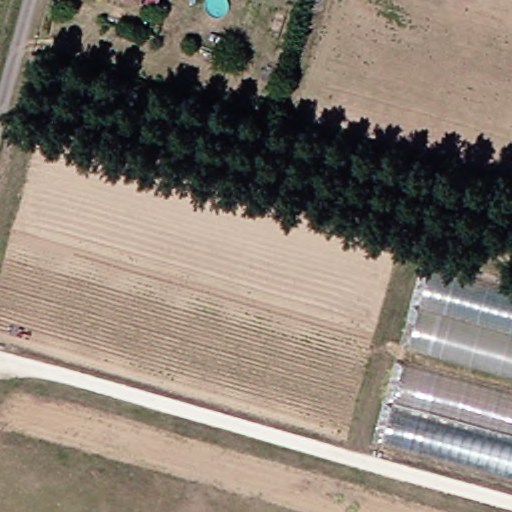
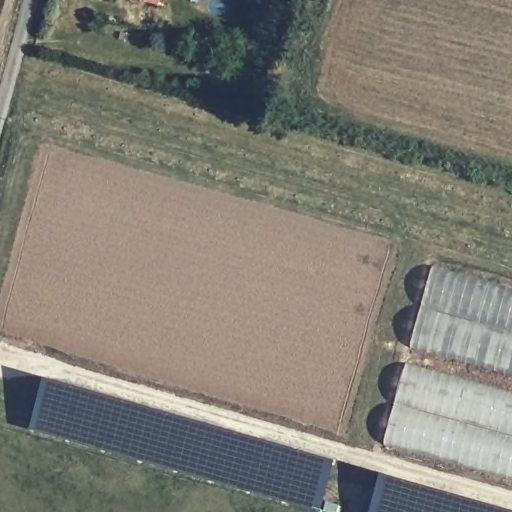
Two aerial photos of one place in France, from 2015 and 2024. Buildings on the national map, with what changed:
unchanged [(512,290),(512,480),(385,446),(435,267),(512,290)]
new [(43,378),(334,461),(322,510),(30,429),(43,378)]
new [(512,512),(369,512),(380,474),(512,512)]

